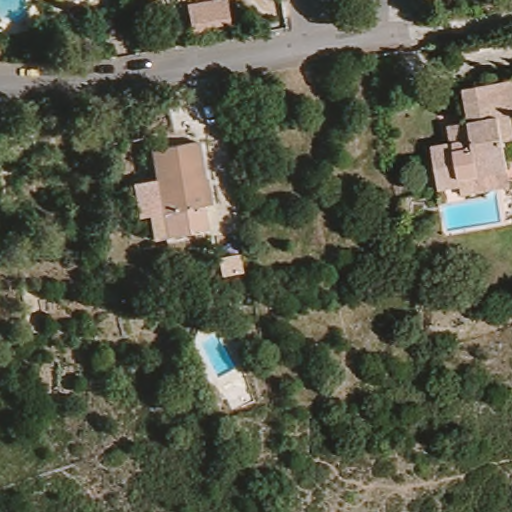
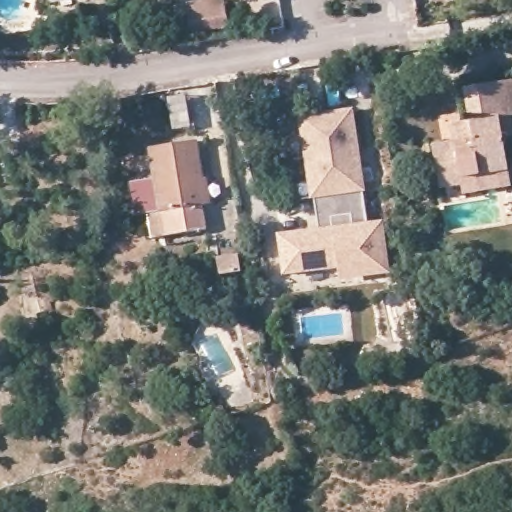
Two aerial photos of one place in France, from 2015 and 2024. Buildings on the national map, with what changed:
unchanged [(225,29),(186,36),(181,6),(212,0),(220,0),(225,29)]
unchanged [(468,192),(466,184),(445,188),(438,146),(459,142),(456,124),(469,122),(475,121),(469,88),(512,81),(512,139),(508,140),(508,141),(512,164),(512,185),(468,192)]
new [(368,221),(384,219),(391,272),(339,280),(337,267),(284,276),(278,233),(319,228),(315,198),(311,199),(299,115),(355,107),(368,221)]
unchanged [(207,200),(211,224),(157,233),(150,187),(162,185),(155,143),(200,136),(206,173),(211,172),(215,199),(207,200)]
unchanged [(218,392),(210,397),(206,391),(215,387),(218,392)]

